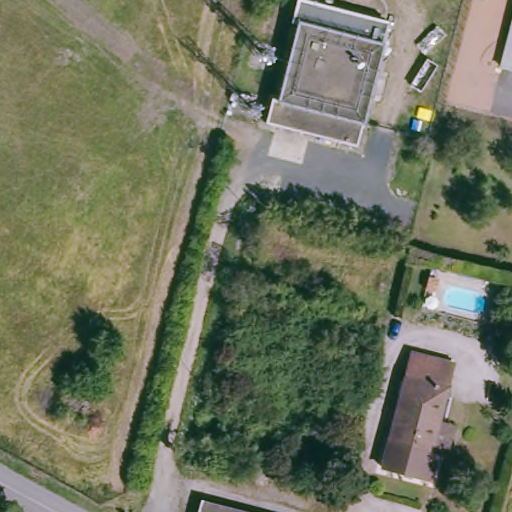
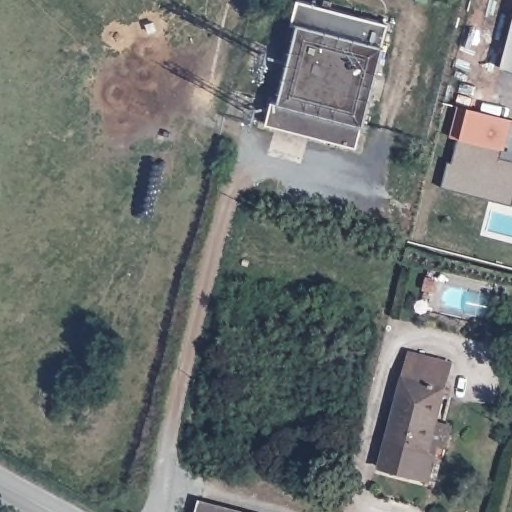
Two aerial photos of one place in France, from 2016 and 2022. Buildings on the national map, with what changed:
unchanged [(384,26),(350,145),(297,131),(294,138),(274,132),(276,126),(262,121),(268,97),(274,97),(295,24),(289,22),(295,3),(384,26)]
unchanged [(497,65),(512,6),(512,70),(497,65)]
new [(444,184),(449,163),(453,164),(459,139),(447,137),(454,106),(511,120),(502,159),(512,162),(512,204),(512,206),(442,189),(444,184)]
unchanged [(444,456),(436,453),(430,478),(382,465),(414,350),(453,360),(438,422),(452,426),(444,456)]
unchanged [(200,512),(202,502),(238,512),(200,512)]

